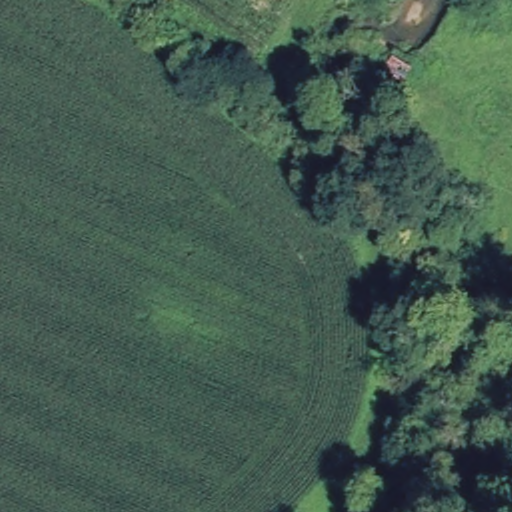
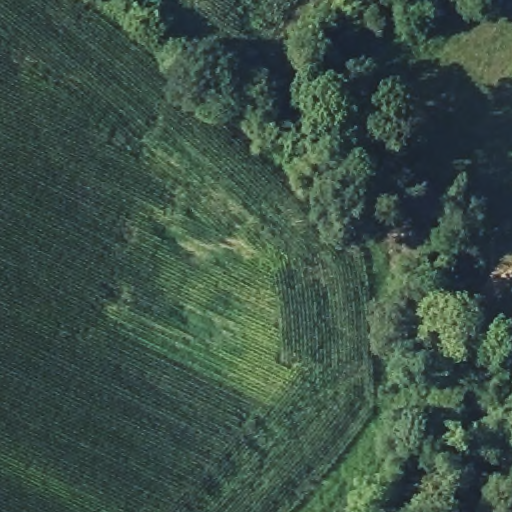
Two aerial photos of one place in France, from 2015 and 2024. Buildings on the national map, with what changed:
unchanged [(412,69),(394,94),(374,80),(390,56),(412,69)]

